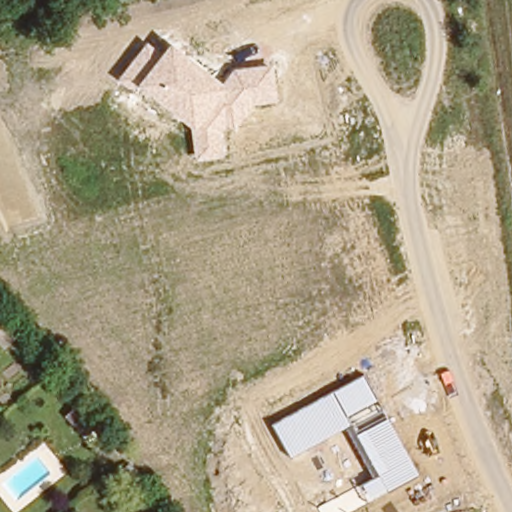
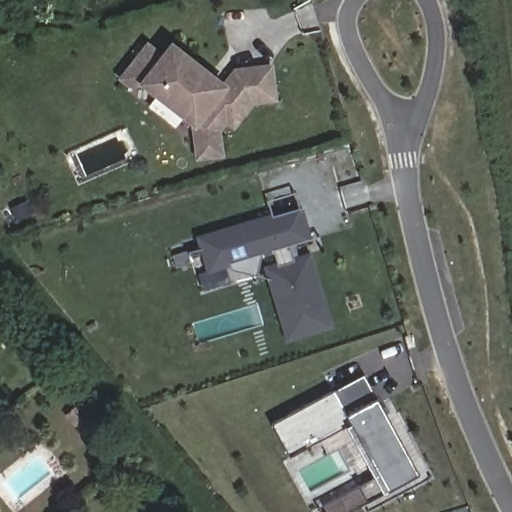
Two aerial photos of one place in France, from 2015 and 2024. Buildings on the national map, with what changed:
unchanged [(233,130),(225,124),(221,132),(224,157),(196,160),(189,124),(138,84),(132,89),(118,78),(147,40),(164,51),(172,42),(224,82),(234,67),(273,64),(278,101),(254,103),(233,130)]
new [(311,239),(296,242),(297,256),(311,253),(332,328),(286,343),(262,266),(276,262),(273,252),(261,255),(256,275),(231,270),(229,267),(205,273),(195,236),(271,213),(272,216),(302,208),(311,239)]
unchanged [(291,457),(272,424),(364,374),(418,474),(367,502),(359,486),(373,478),(344,428),(291,457)]

